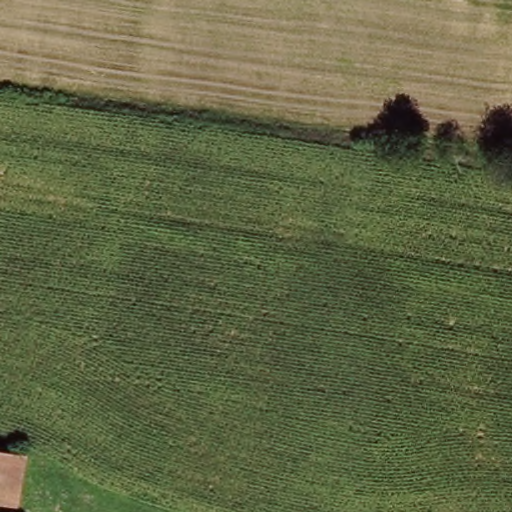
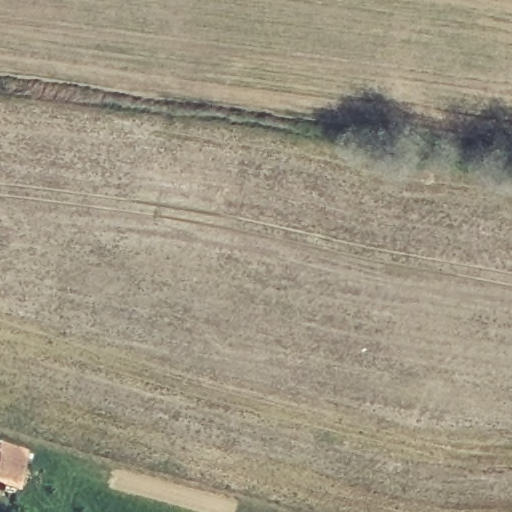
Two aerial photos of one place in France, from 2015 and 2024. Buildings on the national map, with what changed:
unchanged [(15,507),(0,504),(0,448),(26,453),(15,507)]

